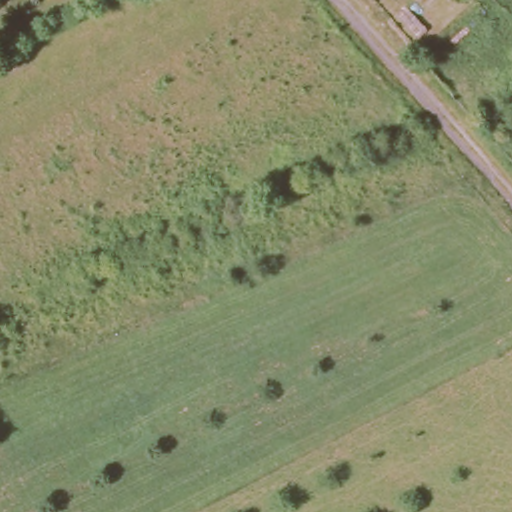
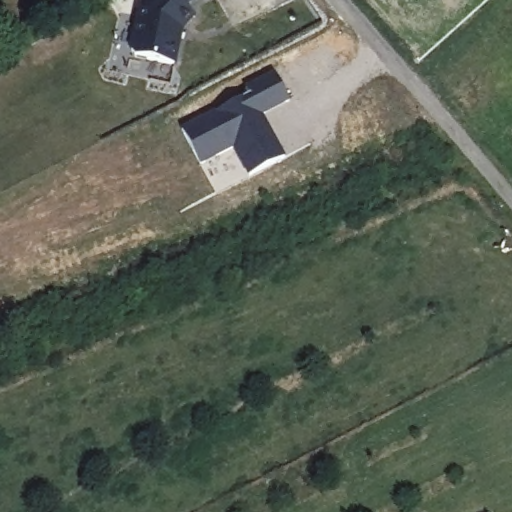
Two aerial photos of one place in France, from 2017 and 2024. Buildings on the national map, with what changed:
new [(187,4),(184,7),(193,16),(179,32),(176,45),(177,45),(173,67),(134,59),(130,52),(140,9),(148,0),(194,0),(187,4)]
new [(232,104),(235,93),(275,72),(290,102),(265,116),(287,159),(248,179),(230,145),(198,162),(182,130),(232,104)]

